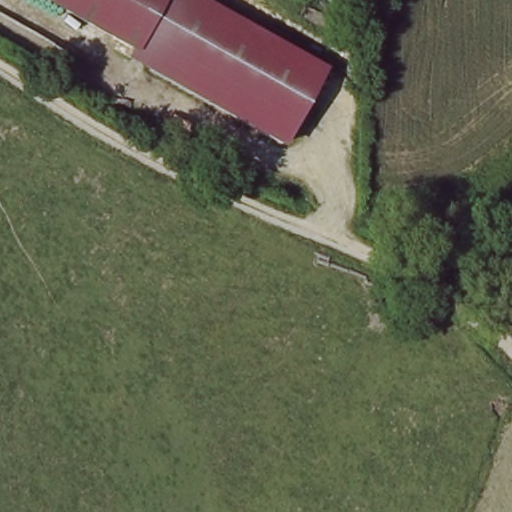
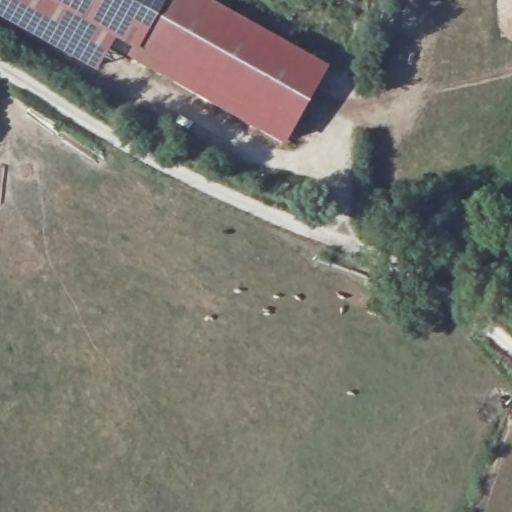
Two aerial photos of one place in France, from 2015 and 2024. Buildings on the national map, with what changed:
new [(97,71),(0,17),(0,0),(41,0),(114,42),(97,71)]
unchanged [(41,0),(213,0),(331,66),(285,141),(41,0)]

